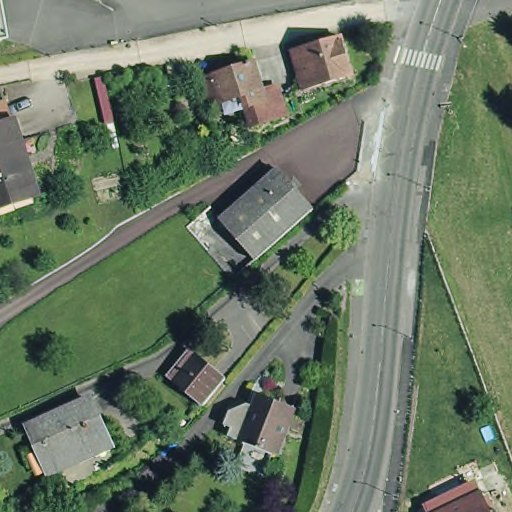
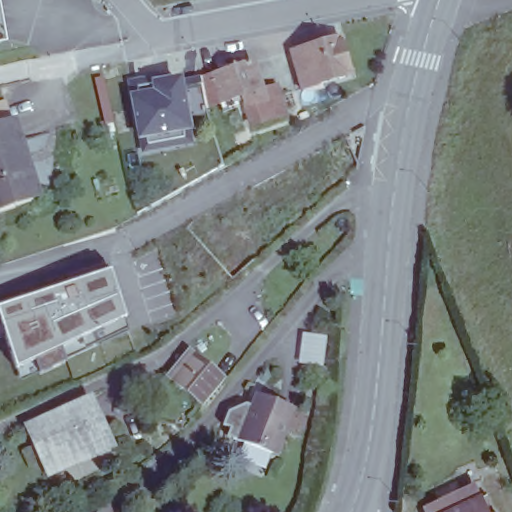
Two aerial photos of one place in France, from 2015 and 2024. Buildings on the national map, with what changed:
unchanged [(0,41),(0,0),(2,0),(8,39),(0,41)]
unchanged [(351,42),(362,80),(313,95),(302,56),(351,42)]
unchanged [(265,124),(249,127),(245,107),(222,111),(220,100),(208,101),(202,75),(215,73),(253,65),(259,92),(262,105),(278,102),(282,120),(265,124)]
new [(183,76),(191,134),(137,141),(130,95),(152,92),(151,81),(183,76)]
unchanged [(40,195),(14,202),(17,215),(0,220),(0,115),(12,111),(17,131),(20,130),(40,195)]
demolished [(261,260),(226,220),(283,169),(319,210),(261,260)]
new [(105,265),(121,309),(10,363),(0,327),(0,300),(105,265)]
unchanged [(209,410),(172,380),(195,355),(230,383),(209,410)]
unchanged [(302,415),(280,460),(250,446),(236,440),(241,430),(234,427),(239,416),(243,411),(257,407),(265,412),(270,400),(302,415)]
unchanged [(91,405),(110,450),(50,477),(30,430),(91,405)]
unchanged [(480,501),(485,512),(455,512),(480,501)]

